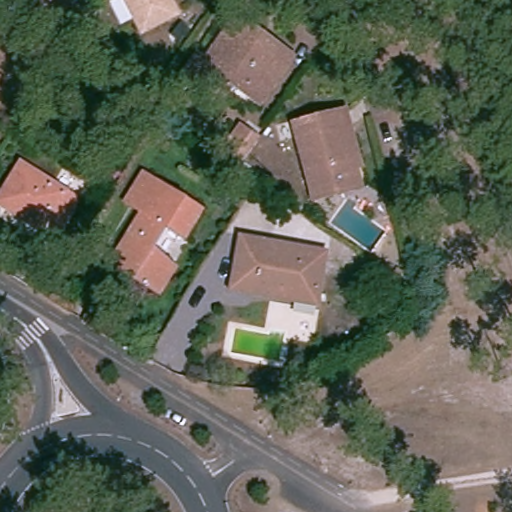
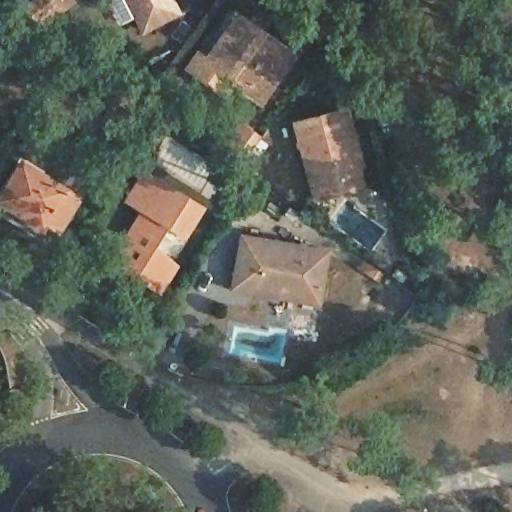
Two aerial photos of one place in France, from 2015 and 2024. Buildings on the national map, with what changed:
unchanged [(71,0),(40,24),(22,10),(35,0),(71,0)]
unchanged [(107,0),(166,0),(174,18),(142,34),(135,21),(120,29),(108,3),(107,0)]
unchanged [(215,91),(190,74),(200,60),(208,66),(235,32),(243,21),(275,46),(294,59),(261,105),(237,88),(227,100),(215,91)]
unchanged [(310,202),(292,128),(340,116),(344,133),(350,131),(358,169),(350,171),(356,192),(310,202)]
unchanged [(53,235),(41,228),(37,234),(0,210),(0,196),(16,170),(72,206),(53,235)]
unchanged [(112,261),(139,219),(120,207),(139,177),(157,189),(198,214),(179,244),(163,234),(150,252),(168,269),(150,297),(128,283),(106,269),(112,261)]
unchanged [(233,296),(234,288),(241,246),(323,259),(316,302),(315,309),(233,296)]

